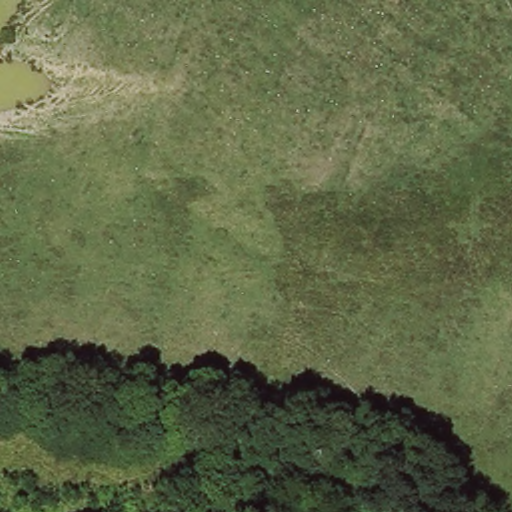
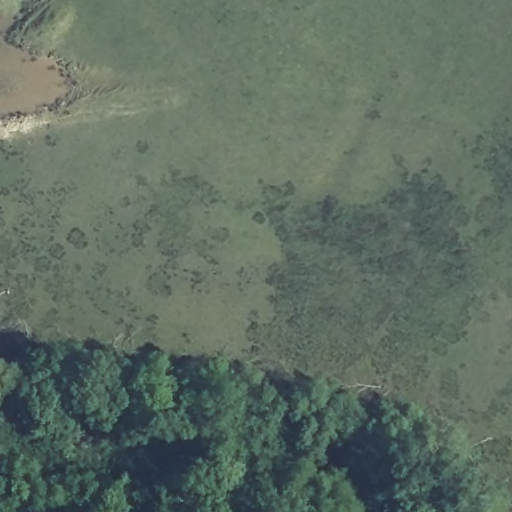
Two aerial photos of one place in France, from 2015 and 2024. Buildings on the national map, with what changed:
[]

